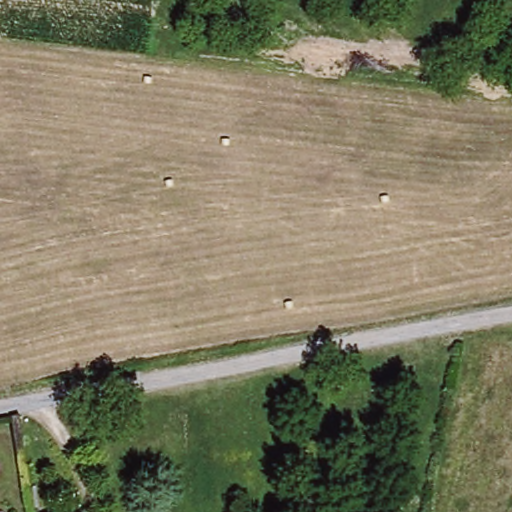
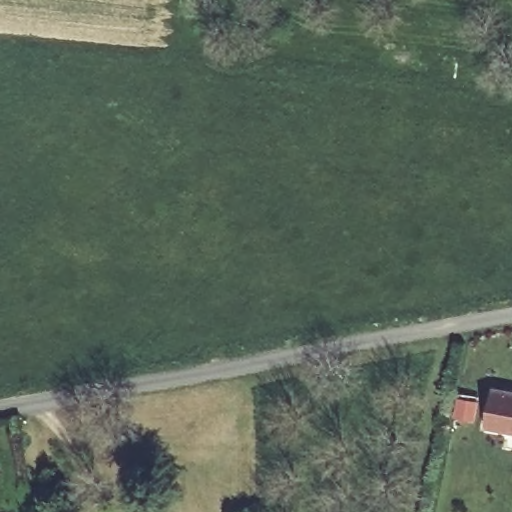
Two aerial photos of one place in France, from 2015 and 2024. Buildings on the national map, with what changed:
new [(512,433),(485,428),(492,388),(512,392),(512,433)]

